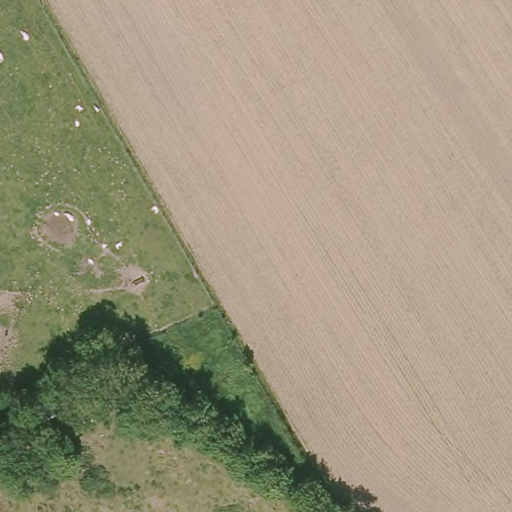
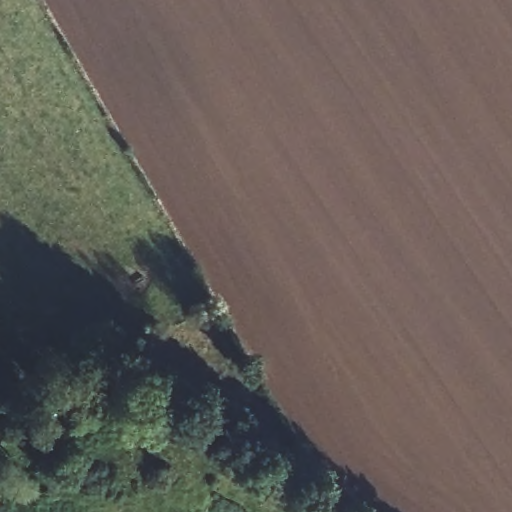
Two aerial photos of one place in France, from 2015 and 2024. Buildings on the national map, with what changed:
unchanged [(0,337),(0,328),(4,335),(0,337)]

